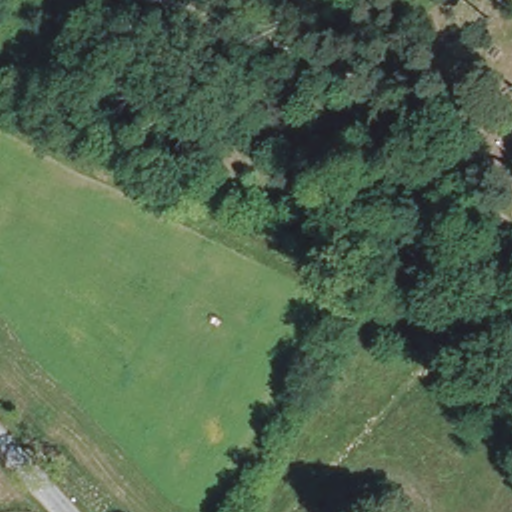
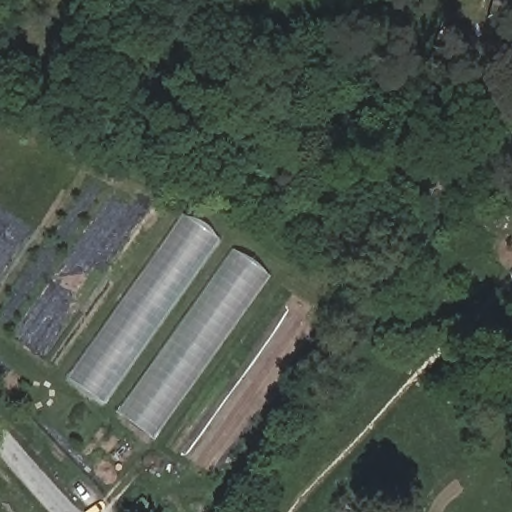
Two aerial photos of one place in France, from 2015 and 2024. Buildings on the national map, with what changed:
new [(103,406),(66,379),(182,215),(219,241),(103,406)]
new [(153,442),(116,415),(232,251),(270,278),(153,442)]

